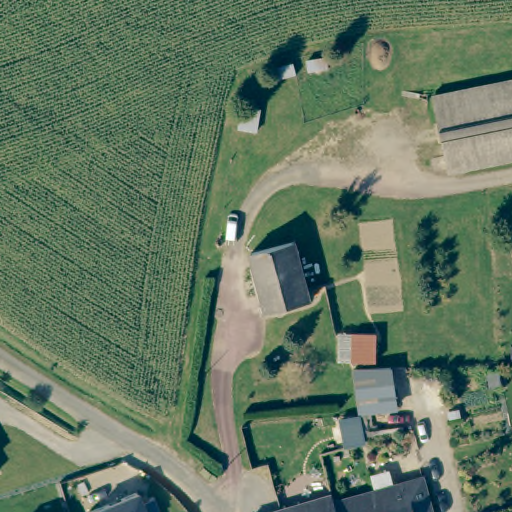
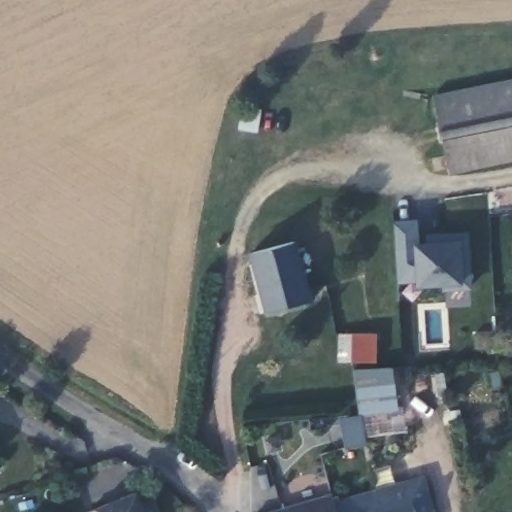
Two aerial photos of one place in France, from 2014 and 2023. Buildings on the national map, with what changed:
unchanged [(433,101),(512,85),(512,160),(448,173),(433,101)]
new [(415,219),(416,243),(432,242),(432,233),(466,231),(470,284),(443,286),(443,281),(417,282),(417,277),(396,279),(392,220),(415,219)]
unchanged [(290,243),(304,306),(261,315),(246,253),(290,243)]
unchanged [(357,371),(396,369),(398,409),(361,412),(357,371)]
unchanged [(408,445),(405,447),(401,446),(398,445),(396,441),(395,438),(396,434),(399,431),(402,430),(406,431),(410,432),(410,434),(408,445)]
unchanged [(423,478),(433,512),(338,512),(335,502),(423,478)]
unchanged [(138,495),(145,512),(91,512),(95,509),(138,495)]
unchanged [(338,512),(275,512),(334,496),(335,502),(338,512)]

